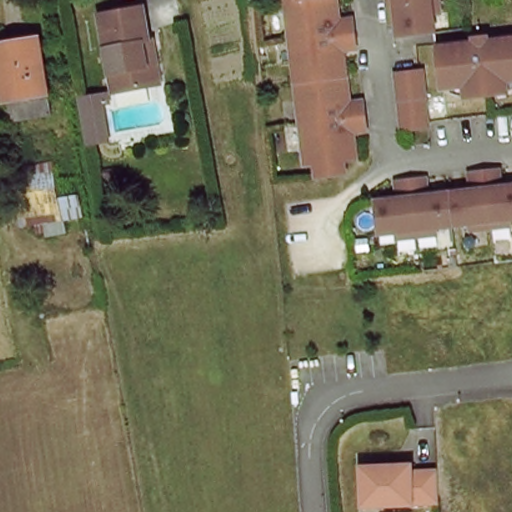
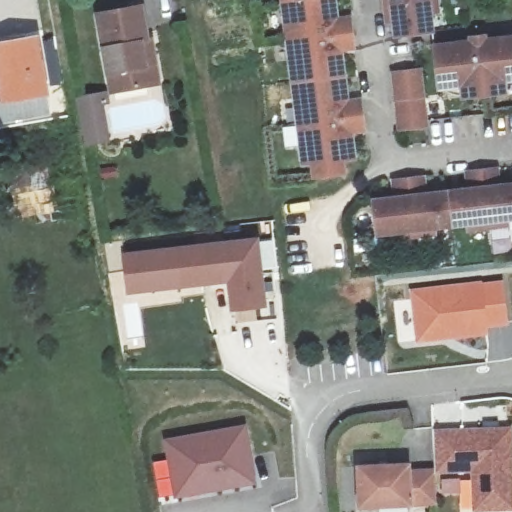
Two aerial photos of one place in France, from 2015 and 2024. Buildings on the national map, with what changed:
unchanged [(340,16),(356,15),(356,45),(343,48),(348,97),(362,97),(363,127),(349,128),(349,157),(341,158),(340,171),(316,172),(314,161),(301,161),(289,0),(339,0),(340,16)]
unchanged [(396,13),(383,16),(382,0),(437,0),(437,9),(430,10),(431,31),(396,34),(396,13)]
unchanged [(163,77),(151,79),(118,84),(108,5),(148,1),(152,33),(159,32),(163,77)]
unchanged [(507,84),(508,96),(464,100),(463,87),(423,90),(424,129),(399,130),(396,76),(420,73),(421,78),(425,78),(424,68),(438,68),(437,48),(474,45),(475,35),(493,35),(494,42),(512,40),(512,83),(507,84)]
unchanged [(46,40),(41,117),(0,116),(0,82),(3,39),(46,40)]
unchanged [(108,85),(109,94),(104,95),(108,132),(86,135),(81,104),(79,89),(108,85)]
unchanged [(84,218),(17,229),(5,166),(55,156),(58,193),(83,195),(84,218)]
unchanged [(378,191),(395,190),(397,169),(428,166),(429,185),(472,183),(471,163),(504,161),(504,179),(512,178),(512,211),(512,220),(473,225),(473,216),(439,218),(439,227),(395,232),(395,224),(377,227),(378,191)]
new [(276,250),(284,315),(253,318),(249,287),(149,296),(144,263),(276,250)]
new [(486,280),(487,284),(506,282),(511,326),(492,328),(493,335),(419,344),(413,289),(486,280)]
new [(512,427),(512,511),(494,512),(477,512),(475,473),(439,473),(439,429),(512,427)]
new [(261,438),(268,490),(191,500),(183,448),(261,438)]
unchanged [(440,505),(364,509),(363,470),(413,467),(413,475),(439,473),(440,505)]

